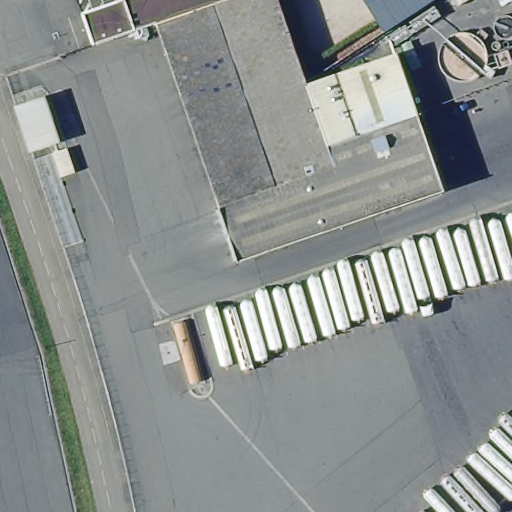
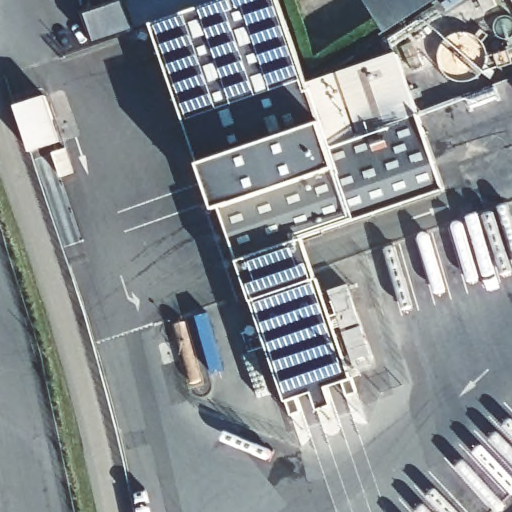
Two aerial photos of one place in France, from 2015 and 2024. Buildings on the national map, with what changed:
unchanged [(93,44),(83,11),(116,0),(124,0),(133,31),(93,44)]
unchanged [(417,113),(443,191),(237,261),(155,23),(133,31),(124,0),(278,0),(307,84),(327,142),(417,113)]
unchanged [(364,0),(435,0),(385,34),(364,0)]
unchanged [(397,54),(417,113),(327,142),(307,84),(397,54)]
unchanged [(15,109),(43,99),(58,145),(30,155),(15,109)]
new [(316,278),(352,379),(285,401),(251,301),(237,261),(302,239),(316,278)]

